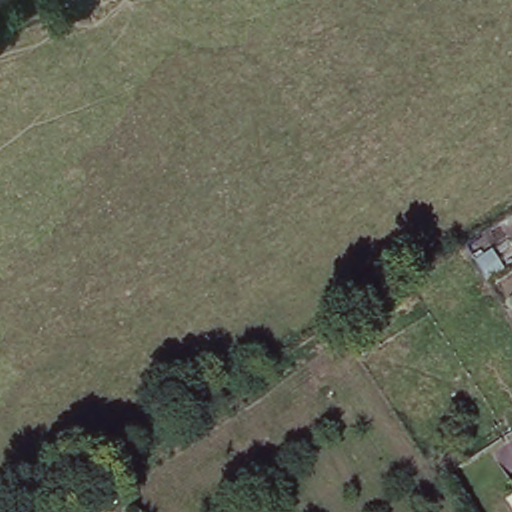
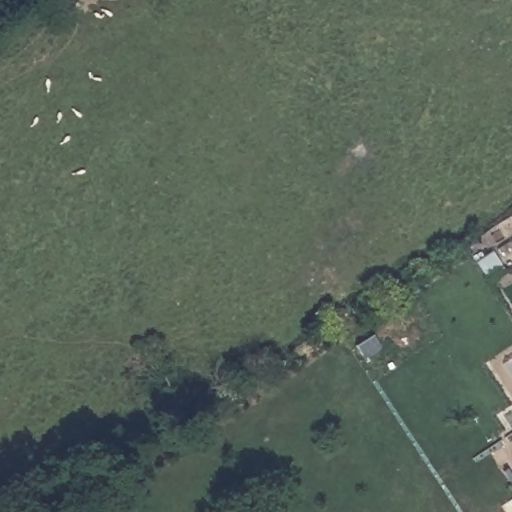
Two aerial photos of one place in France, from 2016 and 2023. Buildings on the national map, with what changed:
unchanged [(512,469),(512,492),(502,476),(512,469)]

